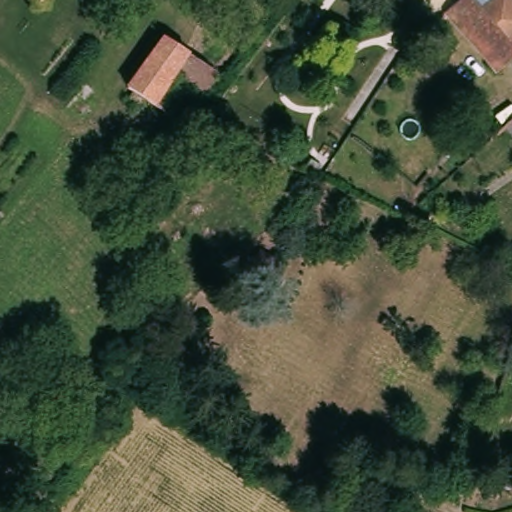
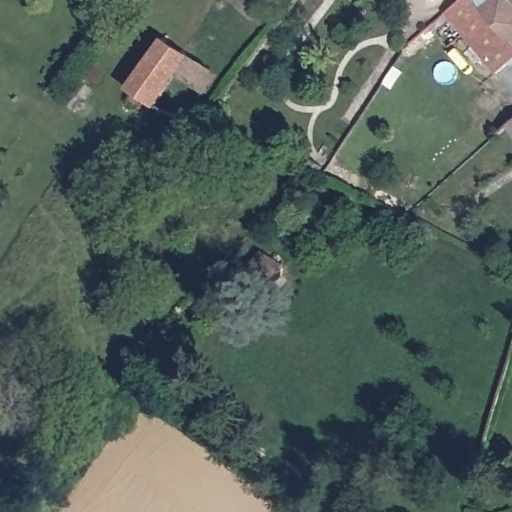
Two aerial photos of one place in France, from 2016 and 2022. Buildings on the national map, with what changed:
unchanged [(455,0),(476,0),(512,39),(512,54),(493,67),(441,14),(450,5),(455,0)]
unchanged [(512,39),(476,0),(512,0),(512,39)]
unchanged [(153,91),(150,87),(179,40),(211,60),(183,104),(181,106),(170,102),(162,113),(152,107),(145,103),(153,91)]
unchanged [(512,119),(512,125),(508,122),(512,119)]
unchanged [(265,288),(241,272),(255,250),(280,268),(265,288)]

